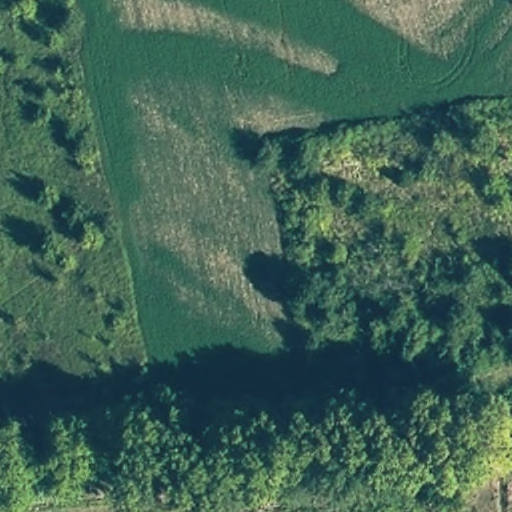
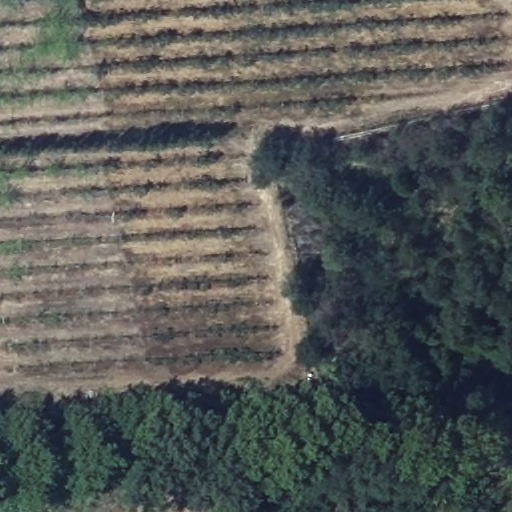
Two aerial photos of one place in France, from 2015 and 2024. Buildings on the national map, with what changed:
unchanged [(202,495),(217,495),(218,510),(210,512),(202,512),(202,495)]

